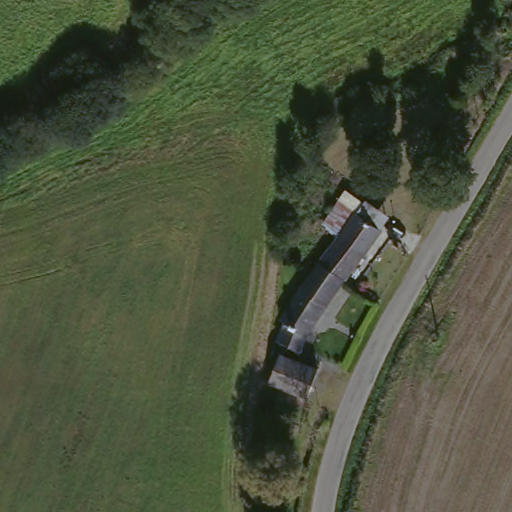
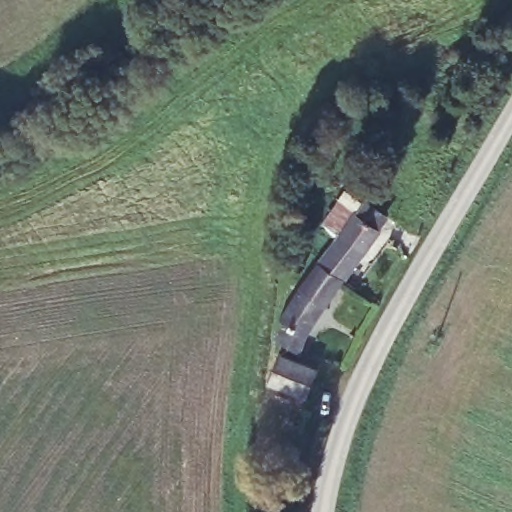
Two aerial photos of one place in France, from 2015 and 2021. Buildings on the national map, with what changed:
unchanged [(315,270),(324,258),(341,237),(320,222),(335,200),(354,213),(357,215),(382,232),(364,255),(349,276),(329,302),(304,284),(315,270)]
unchanged [(281,354),(277,352),(278,350),(283,311),(304,284),(329,302),(306,331),(300,358),(323,363),(316,397),(297,393),(278,390),(281,354)]

